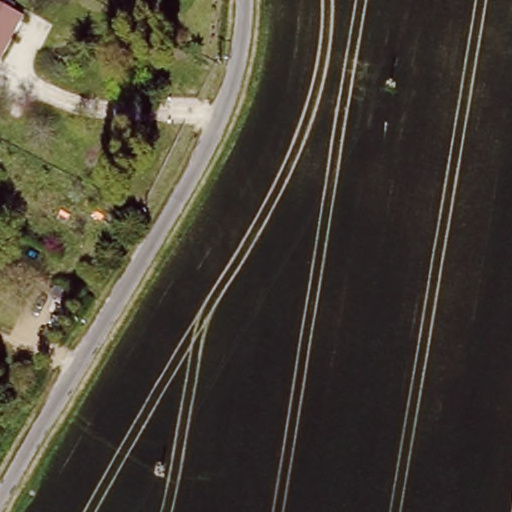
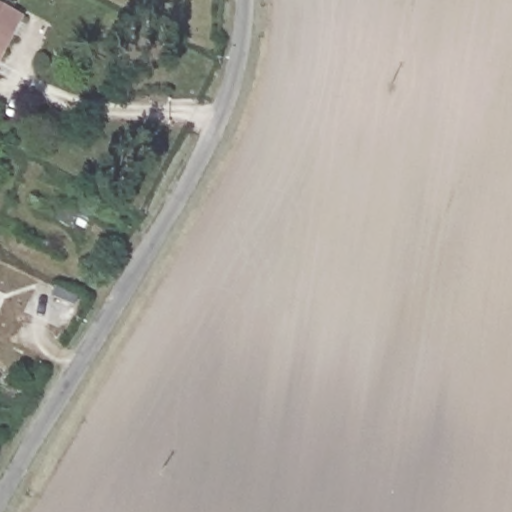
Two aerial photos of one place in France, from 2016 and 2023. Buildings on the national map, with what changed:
unchanged [(23,14),(0,60),(0,0),(19,0),(14,10),(23,14)]

